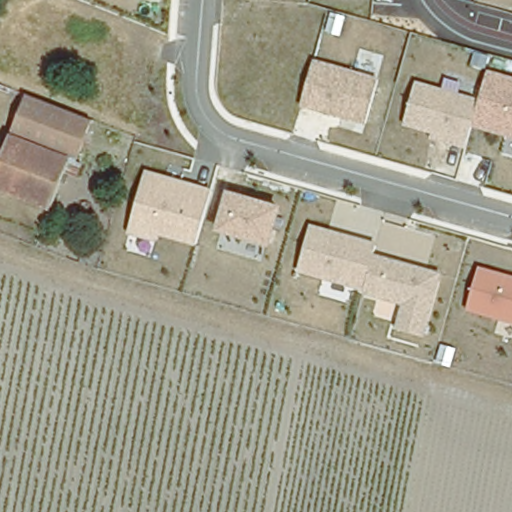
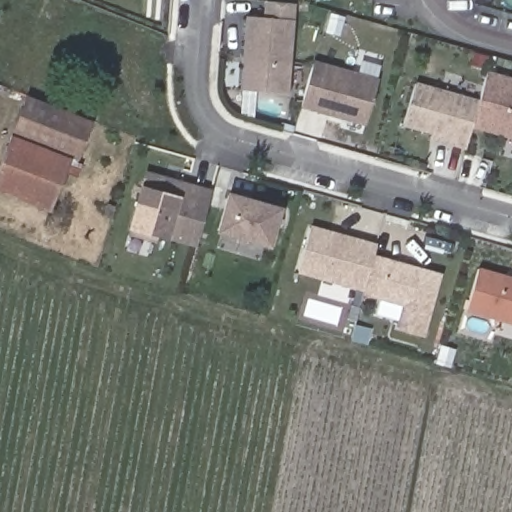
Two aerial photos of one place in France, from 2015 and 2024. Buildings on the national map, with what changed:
new [(245,15),(263,17),(264,2),(295,4),(288,92),(239,88),(245,15)]
unchanged [(381,79),(369,127),(301,107),(314,59),(381,79)]
unchanged [(489,72),(512,78),(512,139),(472,127),(466,149),(431,141),(432,135),(404,127),(417,83),(480,100),(489,72)]
unchanged [(51,207),(0,187),(0,162),(26,97),(92,122),(76,161),(82,163),(77,177),(65,172),(51,207)]
unchanged [(146,170),(212,189),(196,244),(160,234),(157,244),(127,233),(146,170)]
unchanged [(271,250),(216,235),(229,191),(284,206),(271,250)]
unchanged [(425,337),(396,330),(402,306),(363,295),(366,290),(299,272),(312,225),(376,243),(374,255),(443,274),(425,337)]
unchanged [(479,270),(512,278),(512,325),(466,312),(479,270)]

